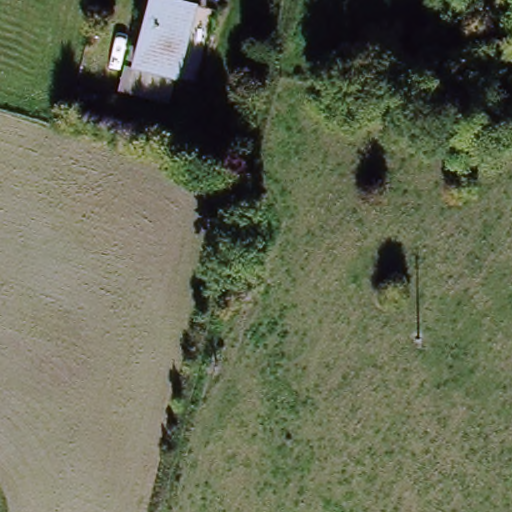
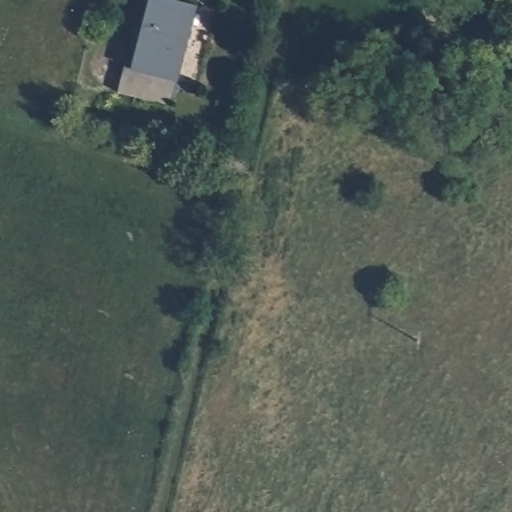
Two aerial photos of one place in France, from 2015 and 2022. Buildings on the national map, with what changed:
unchanged [(162,7),(195,16),(175,88),(142,79),(162,7)]
unchanged [(174,91),(168,114),(115,101),(122,76),(174,91)]

